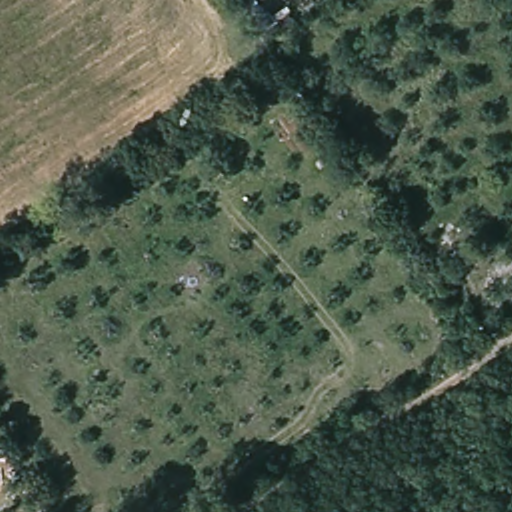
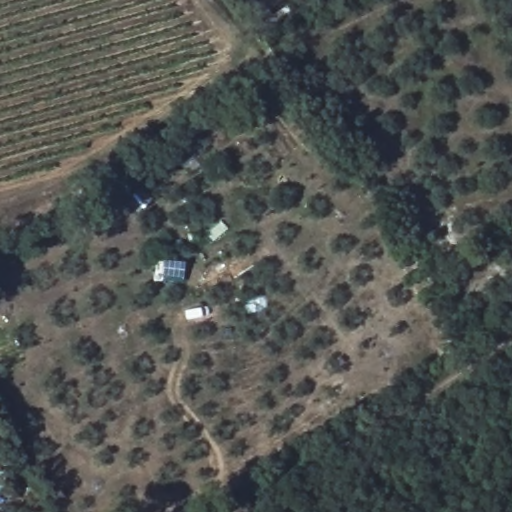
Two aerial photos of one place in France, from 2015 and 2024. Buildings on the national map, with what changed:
[]

